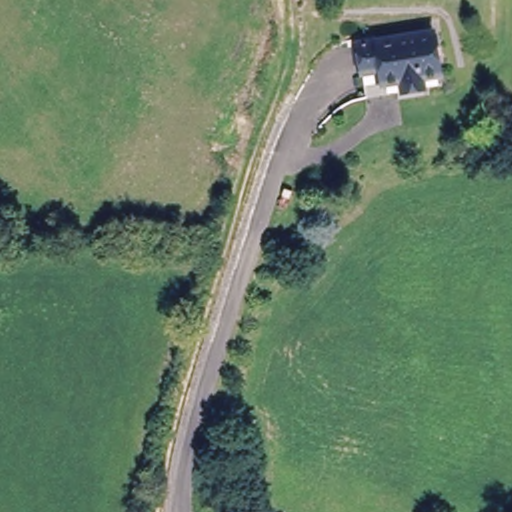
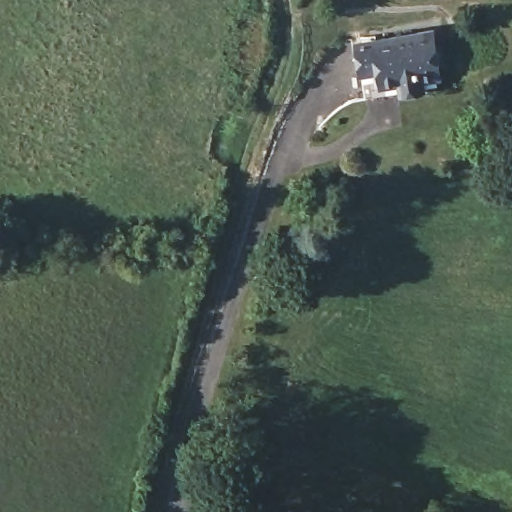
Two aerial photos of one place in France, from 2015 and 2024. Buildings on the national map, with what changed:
unchanged [(424,28),(431,54),(436,72),(423,75),(418,77),(421,87),(399,92),(397,82),(379,87),(375,73),(358,78),(353,60),(349,48),(424,28)]

